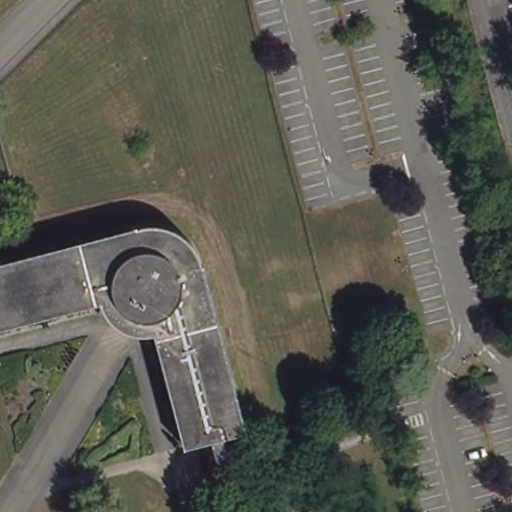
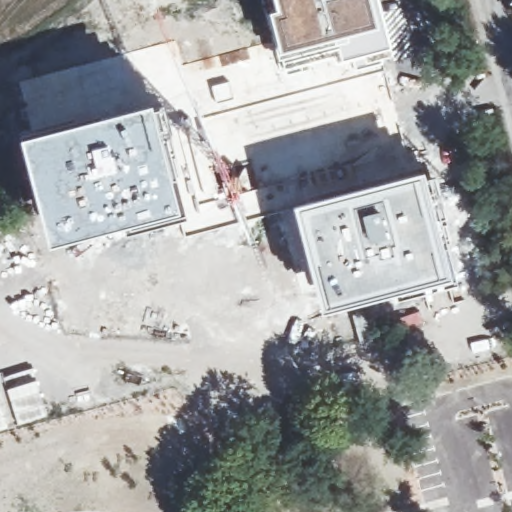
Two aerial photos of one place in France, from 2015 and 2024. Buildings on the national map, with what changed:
new [(393,49),(340,60),(339,51),(282,66),(268,7),(274,5),(273,0),(381,0),(383,7),(393,49)]
new [(155,96),(181,179),(189,211),(131,223),(130,220),(52,239),(22,131),(155,96)]
new [(425,164),(449,242),(457,276),(410,289),(322,308),(294,200),(425,164)]
demolished [(206,267),(241,394),(250,427),(229,433),(230,440),(237,444),(239,450),(235,457),(230,459),(225,459),(220,455),(215,436),(187,444),(155,330),(124,327),(102,299),(0,327),(0,258),(5,256),(63,241),(122,226),(148,219),(180,226),(202,252),(206,267)]

